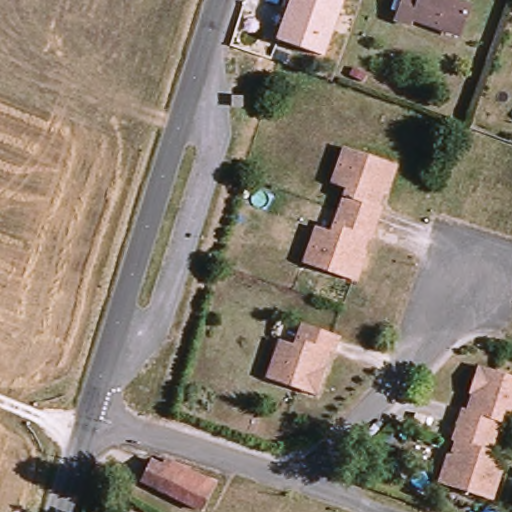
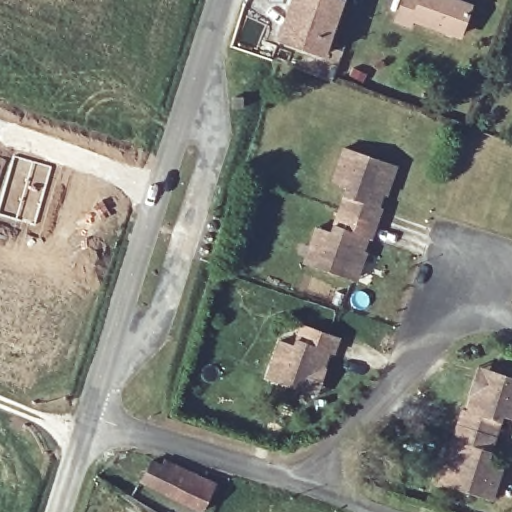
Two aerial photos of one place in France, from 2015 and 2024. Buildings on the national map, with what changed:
unchanged [(319,54),(277,39),(292,0),(340,0),(319,54)]
unchanged [(459,39),(414,22),(411,29),(396,23),(404,0),(420,0),(421,0),(422,0),(447,0),(470,9),(459,39)]
unchanged [(377,202),(382,204),(376,220),(339,207),(345,189),(345,187),(331,182),(343,146),(391,163),(377,202)]
unchanged [(369,240),(365,239),(351,278),(303,263),(315,225),(331,230),(339,207),(376,220),(369,240)]
unchanged [(332,350),(329,348),(320,377),(304,373),(299,388),(268,379),(279,341),(294,345),(303,321),(338,334),(332,350)]
unchanged [(459,407),(464,409),(472,380),(488,385),(492,371),(512,377),(512,420),(498,416),(491,435),(454,423),(459,407)]
unchanged [(488,498),(439,482),(453,440),(449,440),(454,423),(491,435),(485,454),(501,459),(488,498)]
unchanged [(163,458),(216,481),(203,510),(140,480),(149,460),(160,465),(163,458)]

